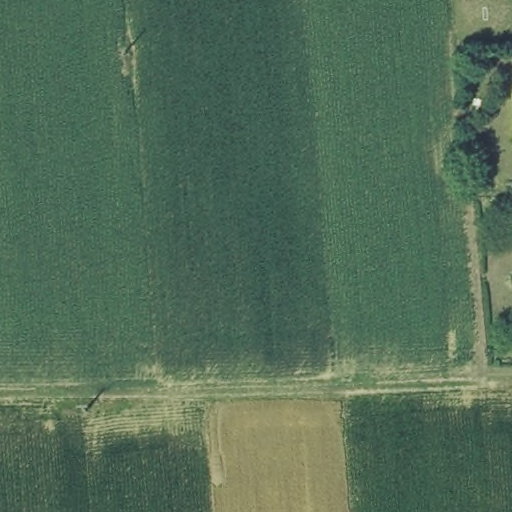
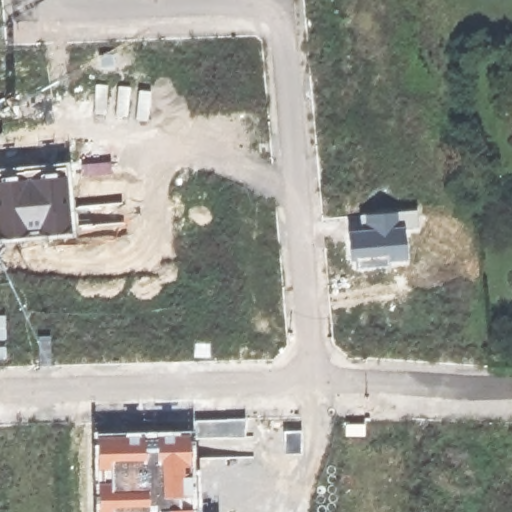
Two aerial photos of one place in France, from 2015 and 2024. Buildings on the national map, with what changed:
new [(74,234),(0,241),(0,167),(68,160),(74,234)]
new [(359,228),(358,214),(418,209),(419,229),(404,230),(407,262),(351,269),(348,229),(359,228)]
new [(6,339),(0,339),(0,315),(5,314),(6,339)]
new [(246,417),(246,438),(195,440),(193,428),(193,419),(246,417)]
new [(193,428),(195,440),(198,496),(197,512),(92,512),(91,431),(193,428)]

